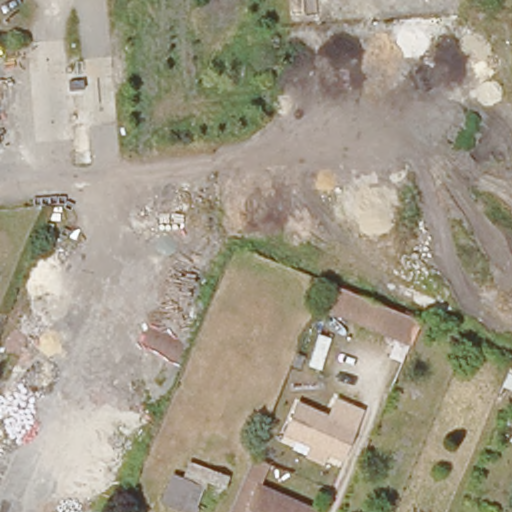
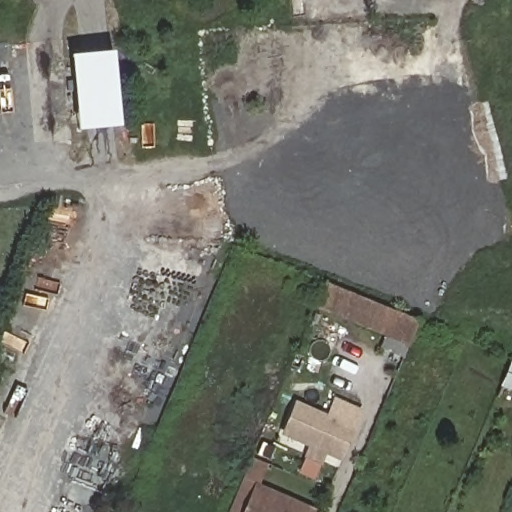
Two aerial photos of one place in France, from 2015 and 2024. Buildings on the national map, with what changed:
new [(79,129),(71,55),(113,51),(120,126),(79,129)]
unchanged [(325,277),(421,313),(407,344),(313,307),(325,277)]
unchanged [(512,365),(512,391),(503,387),(511,365),(512,365)]
unchanged [(294,402),(324,413),(331,395),(362,407),(341,458),(280,434),(294,402)]
unchanged [(219,471),(202,512),(170,512),(192,458),(219,471)]
unchanged [(265,473),(259,487),(318,511),(318,512),(227,512),(246,465),(265,473)]

